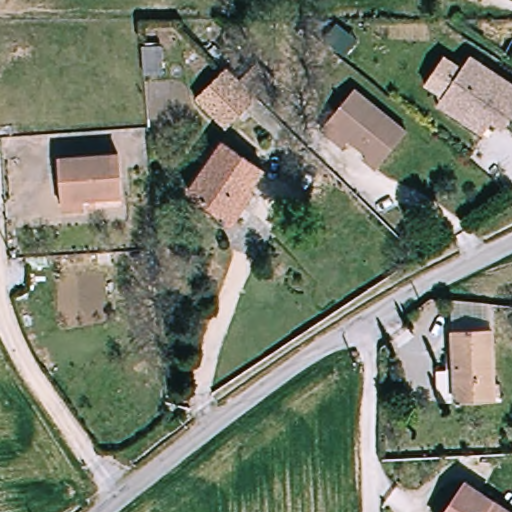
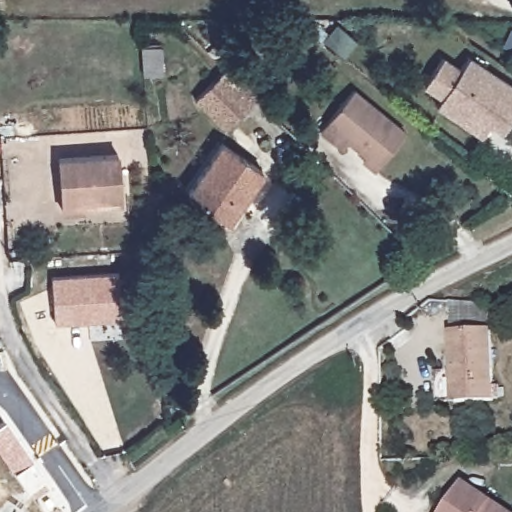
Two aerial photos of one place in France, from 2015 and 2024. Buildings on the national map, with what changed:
unchanged [(455,94),(438,83),(455,58),(471,69),(478,59),(512,83),(512,130),(511,132),(500,124),(491,138),(446,107),(455,94)]
unchanged [(199,99),(228,70),(242,84),(258,66),(265,73),(276,83),(267,91),(259,100),(229,130),(199,99)]
unchanged [(323,127),(329,120),(357,88),(411,130),(380,168),(366,156),(370,152),(352,139),(346,146),(323,127)]
unchanged [(266,173),(233,221),(192,193),(224,144),(266,173)]
unchanged [(82,209),(62,211),(58,159),(84,159),(117,156),(120,199),(96,200),(97,209),(82,209)]
new [(119,272),(122,319),(55,324),(51,276),(119,272)]
unchanged [(439,370),(457,369),(454,329),(496,327),(499,398),(458,399),(440,401),(439,370)]
new [(0,456),(0,423),(3,421),(30,461),(12,474),(0,456)]
unchanged [(469,486),(506,512),(450,512),(469,486)]

